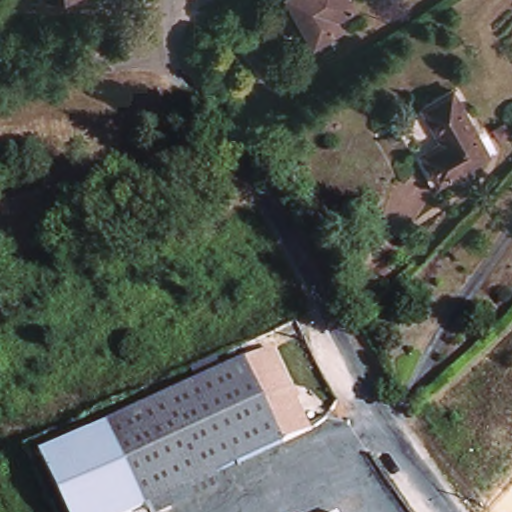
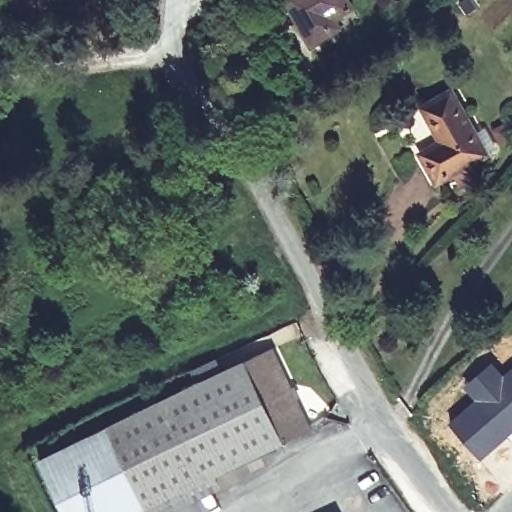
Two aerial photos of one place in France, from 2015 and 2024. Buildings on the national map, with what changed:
unchanged [(336,19),(341,27),(312,45),(286,0),(347,0),(352,10),(336,19)]
unchanged [(464,186),(459,175),(443,184),(441,182),(425,152),(444,141),(426,108),(456,91),(493,156),(475,166),(481,177),(464,186)]
unchanged [(435,185),(400,123),(426,108),(444,141),(425,152),(441,182),(435,185)]
unchanged [(313,428),(283,442),(240,355),(270,341),(313,428)]
unchanged [(213,477),(146,511),(101,418),(240,355),(283,442),(213,477)]
new [(473,399),(462,387),(492,360),(503,372),(512,366),(512,432),(479,461),(447,422),(473,399)]
unchanged [(101,418),(146,511),(143,512),(76,512),(46,444),(101,418)]
unchanged [(220,490),(175,512),(147,512),(146,511),(213,477),(220,490)]

